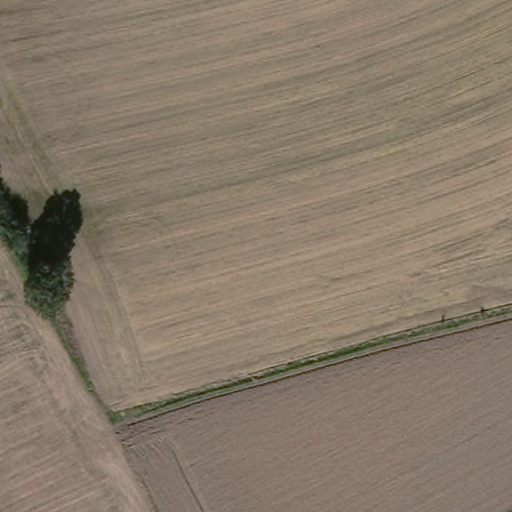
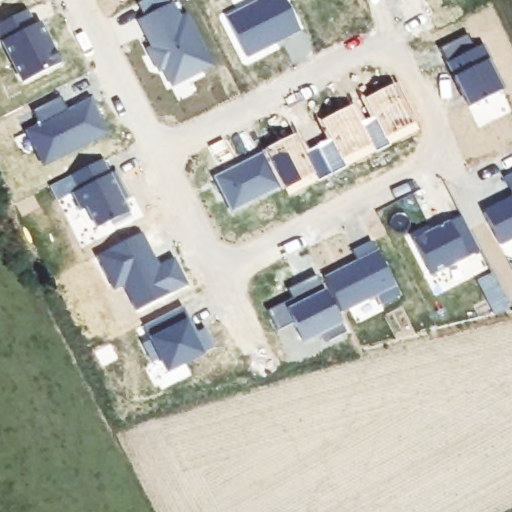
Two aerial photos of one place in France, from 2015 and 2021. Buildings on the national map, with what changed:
new [(259,0),(284,0),(298,29),(245,56),(225,17),(259,0)]
new [(168,82),(161,68),(155,66),(148,52),(150,46),(136,19),(171,2),(178,17),(185,14),(211,65),(188,77),(170,86),(168,82)]
new [(25,10),(32,25),(38,22),(59,63),(21,82),(0,39),(0,23),(25,10)]
new [(466,33),(474,48),(481,44),(489,59),(487,60),(501,89),(468,106),(438,47),(466,33)]
new [(293,134),(302,152),(330,138),(320,120),(350,105),(359,124),(373,116),(364,98),(394,83),(417,128),(386,144),(387,145),(372,153),(371,152),(343,166),(343,168),(316,181),(315,180),(286,195),(282,185),(264,151),(263,149),(293,134)]
new [(38,125),(30,111),(59,96),(67,111),(88,100),(105,132),(43,164),(26,131),(38,125)]
new [(264,151),(282,185),(231,211),(214,176),(264,151)]
new [(109,174),(114,171),(127,198),(123,201),(130,216),(112,226),(110,220),(96,227),(86,207),(80,210),(71,193),(63,197),(56,200),(49,185),(55,182),(101,159),(109,174)]
new [(512,172),(512,193),(503,176),(512,172)]
new [(512,237),(499,243),(483,212),(512,197),(512,237)]
new [(429,227),(446,220),(447,222),(461,215),(472,237),(479,251),(430,275),(412,240),(431,230),(429,227)]
new [(141,232),(158,265),(173,257),(187,284),(135,311),(122,285),(113,290),(95,255),(141,232)]
new [(357,261),(351,251),(371,241),(398,295),(380,304),(375,293),(340,311),(323,278),(357,261)]
new [(287,289),(298,283),(315,274),(345,332),(326,342),(321,333),(303,342),(293,323),(277,330),(267,310),(291,297),(287,289)]
new [(143,325),(181,305),(188,321),(194,332),(204,328),(214,347),(166,371),(159,358),(151,362),(142,343),(150,339),(143,325)]

